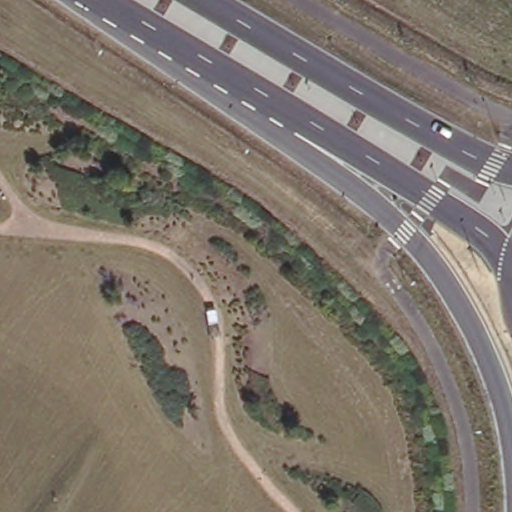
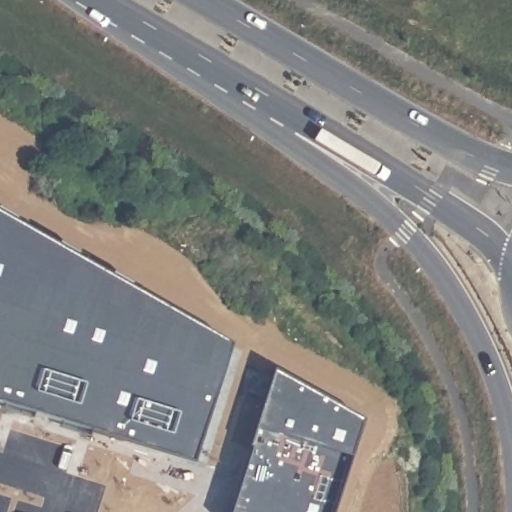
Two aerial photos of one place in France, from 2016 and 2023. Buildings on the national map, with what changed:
new [(224,342),(191,462),(0,401),(0,214),(224,342)]
new [(358,419),(330,512),(232,512),(269,372),(358,419)]

